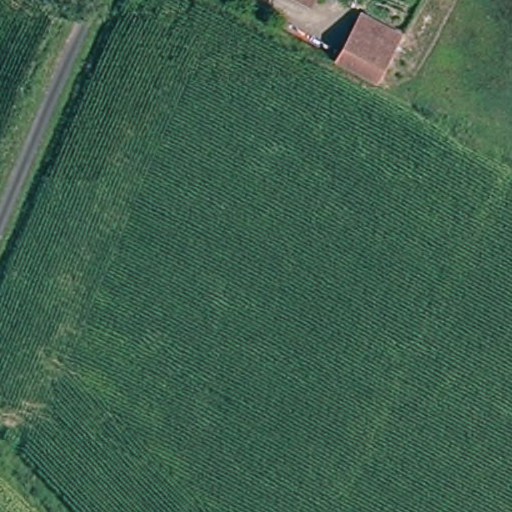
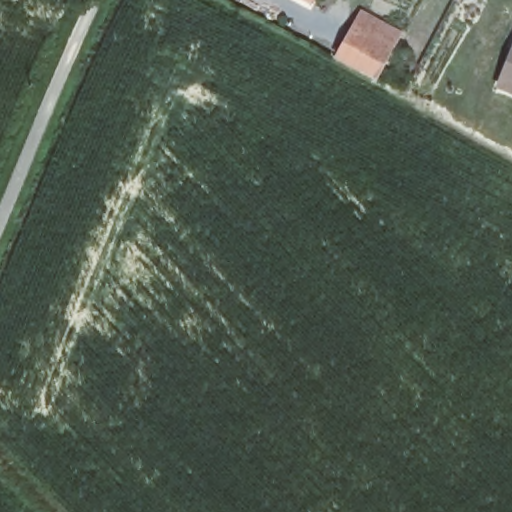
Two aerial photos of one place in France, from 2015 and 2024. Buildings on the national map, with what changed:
unchanged [(306,0),(314,0),(312,4),(306,0)]
unchanged [(360,16),(400,38),(380,78),(340,55),(360,16)]
new [(496,90),(512,50),(512,96),(496,90)]

